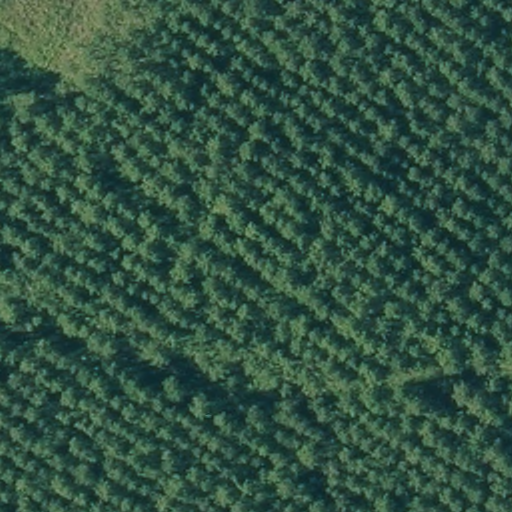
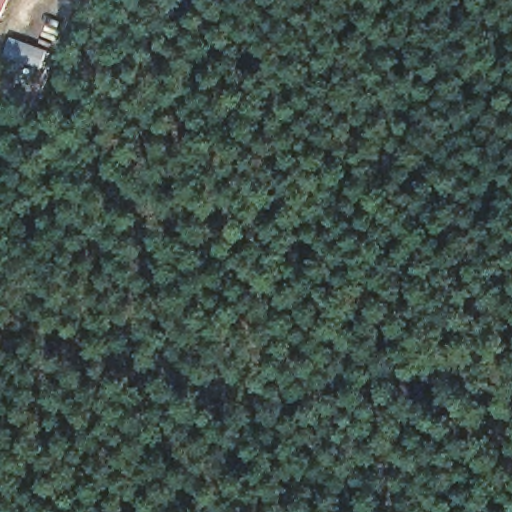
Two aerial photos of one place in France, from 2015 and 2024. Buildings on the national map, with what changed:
new [(0,14),(0,0),(10,0),(4,15),(0,14)]

